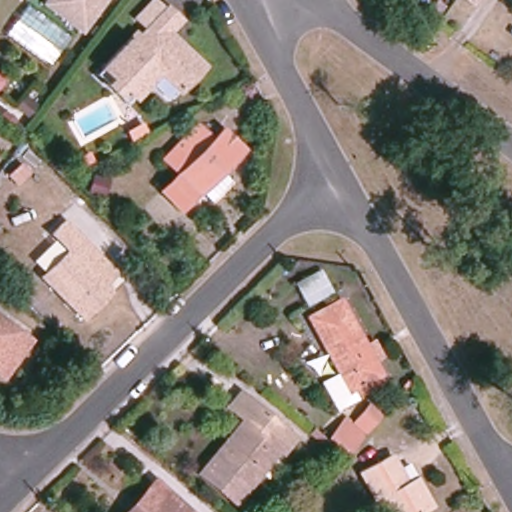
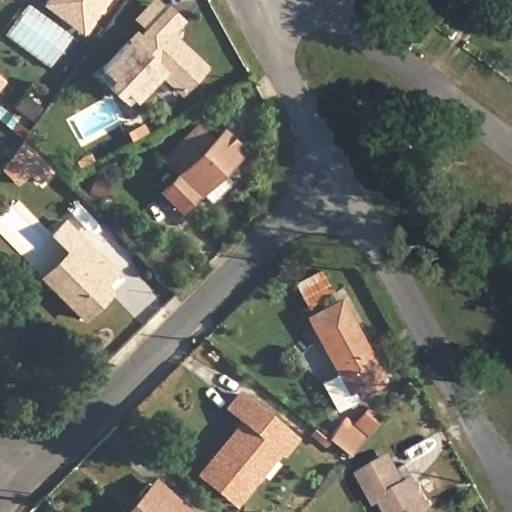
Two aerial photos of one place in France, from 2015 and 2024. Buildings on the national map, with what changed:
unchanged [(47,0),(99,0),(89,14),(81,25),(47,0)]
unchanged [(181,26),(165,43),(181,58),(185,53),(203,71),(179,95),(157,74),(131,101),(102,73),(136,39),(141,44),(151,34),(141,24),(157,7),(167,16),(169,15),(181,26)]
unchanged [(206,198),(192,185),(174,204),(157,188),(175,170),(161,157),(195,121),(209,135),(217,126),(234,142),(214,163),(227,176),(206,198)]
unchanged [(9,176),(21,165),(29,173),(16,184),(9,176)]
unchanged [(86,172),(101,176),(97,191),(82,187),(86,172)]
unchanged [(101,287),(74,314),(39,279),(65,253),(58,246),(41,229),(52,218),(105,270),(95,280),(101,287)]
unchanged [(380,375),(348,392),(308,318),(340,301),(380,375)]
unchanged [(0,321),(33,345),(12,374),(0,365),(0,321)]
unchanged [(240,394),(292,438),(281,453),(275,448),(244,485),(246,487),(234,502),(200,474),(211,460),(214,462),(246,423),(228,408),(240,394)]
unchanged [(328,442),(341,427),(360,443),(347,458),(328,442)]
unchanged [(406,468),(414,483),(411,484),(426,512),(382,512),(378,505),(372,508),(356,478),(387,461),(394,475),(406,468)]
unchanged [(122,512),(152,477),(194,512),(122,512)]

